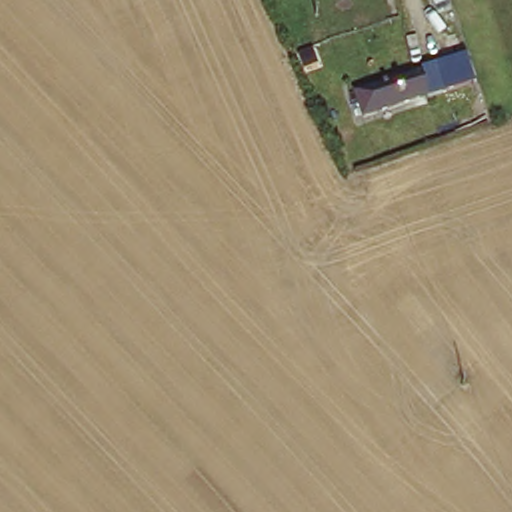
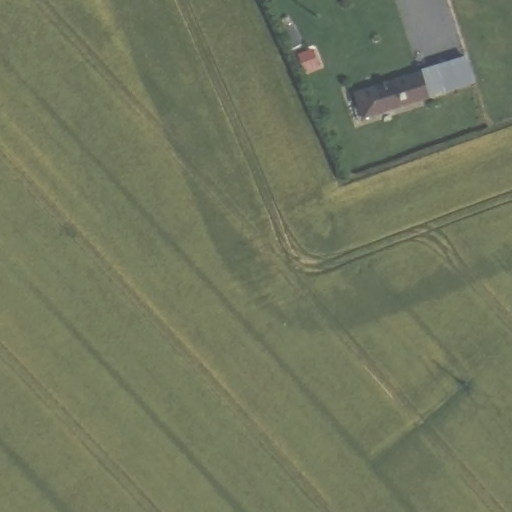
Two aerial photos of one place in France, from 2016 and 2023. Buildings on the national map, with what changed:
unchanged [(467,56),(474,79),(424,95),(416,72),(467,56)]
unchanged [(424,95),(361,116),(353,90),(416,72),(424,95)]

